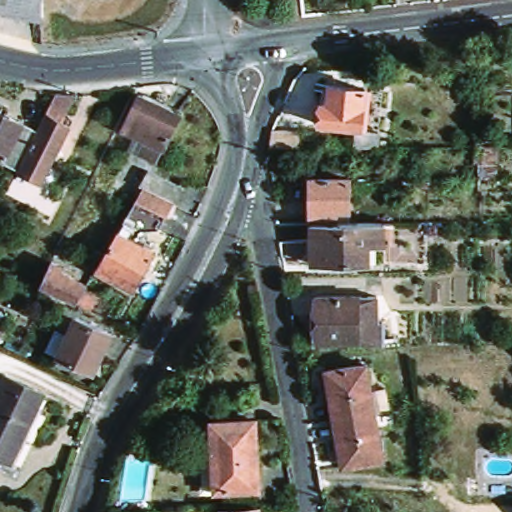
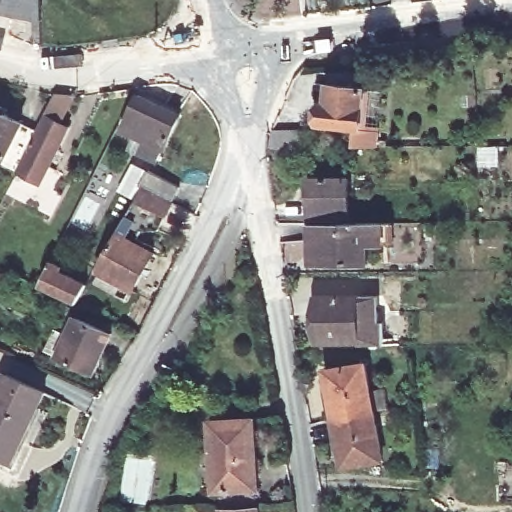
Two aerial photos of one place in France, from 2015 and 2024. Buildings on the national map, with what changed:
unchanged [(0,17),(0,0),(44,0),(44,26),(0,17)]
unchanged [(353,146),(355,130),(320,126),(323,104),(327,105),(330,86),(366,89),(384,91),(378,132),(376,148),(353,146)]
unchanged [(156,159),(141,151),(145,140),(124,129),(140,95),(180,115),(156,159)]
unchanged [(75,96),(65,127),(71,130),(40,187),(22,179),(22,176),(20,175),(42,134),(62,97),(75,96)]
unchanged [(0,114),(42,134),(20,175),(0,165),(0,114)]
unchanged [(271,149),(272,133),(275,132),(301,132),(301,150),(271,151),(271,149)]
unchanged [(350,180),(350,213),(337,213),(337,224),(313,224),(313,180),(350,180)]
unchanged [(147,232),(140,243),(157,254),(136,293),(105,276),(131,224),(126,222),(140,202),(149,185),(177,201),(170,218),(164,229),(147,232)]
unchanged [(337,224),(385,224),(386,246),(371,246),(371,266),(349,264),(313,265),(313,224),(337,224)]
unchanged [(87,307),(74,300),(34,285),(46,259),(50,261),(49,267),(82,283),(80,288),(91,296),(87,307)]
unchanged [(316,297),(380,297),(380,323),(387,323),(387,342),(316,344),(316,297)]
unchanged [(0,326),(0,309),(7,312),(0,326)]
unchanged [(95,375),(58,359),(76,320),(112,336),(95,375)]
unchanged [(0,340),(0,330),(5,334),(0,340)]
unchanged [(327,372),(368,363),(376,412),(335,420),(327,372)]
unchanged [(0,460),(0,385),(3,377),(45,396),(19,467),(0,460)]
unchanged [(335,420),(376,412),(385,460),(345,468),(335,420)]
unchanged [(212,419),(256,416),(259,500),(216,502),(212,419)]
unchanged [(259,512),(221,512),(221,509),(259,507),(259,512)]

